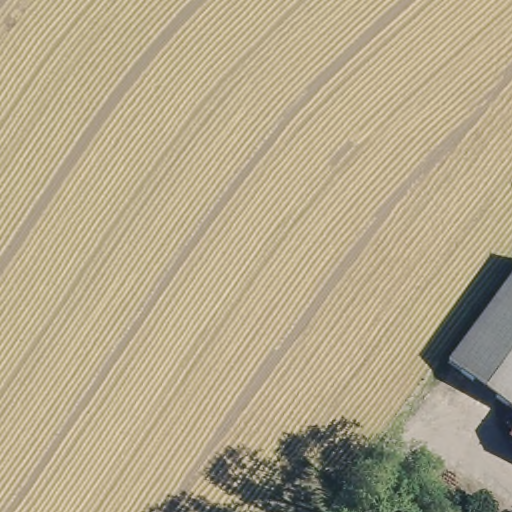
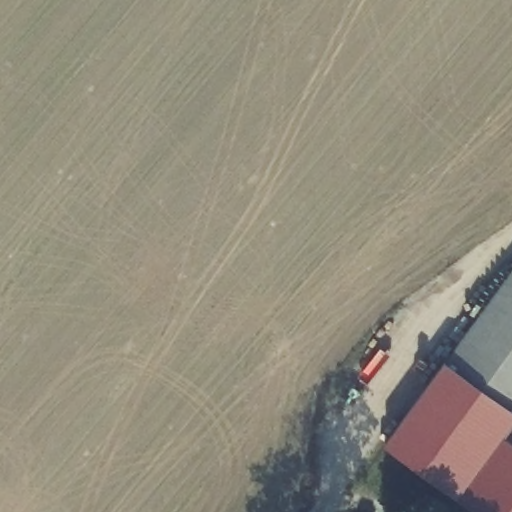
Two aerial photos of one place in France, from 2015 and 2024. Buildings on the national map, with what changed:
unchanged [(445,356),(512,272),(512,338),(477,382),(445,356)]
unchanged [(512,338),(512,411),(477,382),(512,338)]
new [(512,411),(512,424),(502,438),(512,446),(512,512),(477,512),(385,446),(449,358),(477,382),(512,411)]
unchanged [(512,424),(512,446),(502,438),(512,424)]

